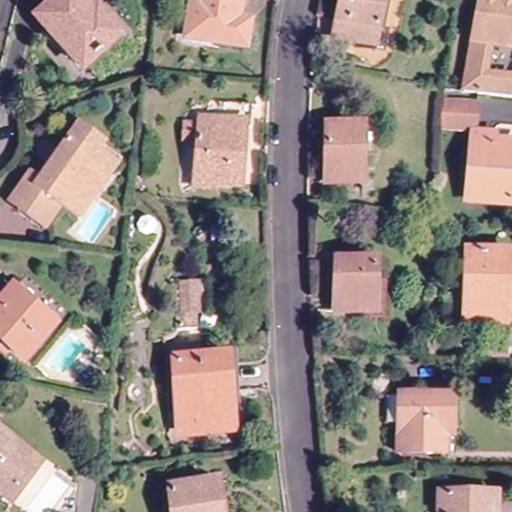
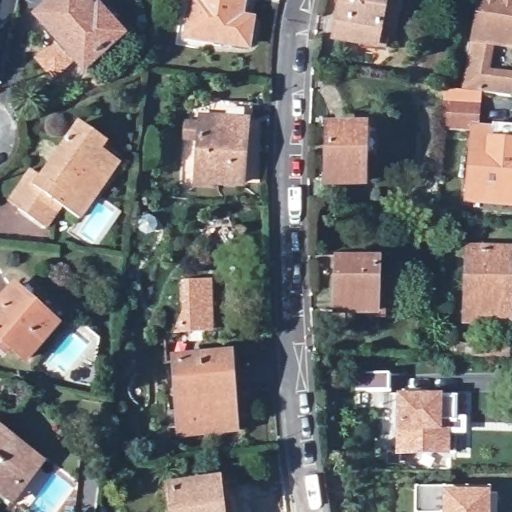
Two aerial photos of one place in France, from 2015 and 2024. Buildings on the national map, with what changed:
unchanged [(100,13),(123,39),(84,73),(39,21),(55,5),(51,0),(81,0),(96,17),(100,13)]
unchanged [(249,22),(245,47),(186,40),(192,0),(199,0),(242,0),(239,21),(249,22)]
unchanged [(326,42),(338,8),(332,6),(335,0),(386,0),(367,56),(326,42)]
unchanged [(484,61),(465,57),(477,0),(512,0),(512,46),(487,42),(484,61)]
unchanged [(442,100),(471,105),(468,123),(439,118),(442,100)]
unchanged [(233,189),(191,186),(193,142),(181,141),(181,128),(200,130),(202,107),(246,110),(244,132),(237,132),(233,189)]
unchanged [(362,129),(361,188),(325,186),(325,127),(362,129)]
unchanged [(490,139),(512,142),(512,160),(507,201),(463,195),(471,129),(491,132),(490,139)]
unchanged [(22,177),(31,167),(44,178),(80,136),(104,156),(121,170),(100,196),(76,224),(59,209),(41,230),(18,210),(4,198),(22,177)]
unchanged [(509,246),(504,317),(458,315),(459,292),(462,293),(466,243),(509,246)]
unchanged [(376,262),(375,312),(335,311),(336,260),(376,262)]
unchanged [(176,331),(176,339),(156,338),(154,282),(199,281),(195,330),(176,331)]
unchanged [(55,327),(26,362),(10,347),(4,354),(0,351),(0,302),(11,289),(55,327)]
unchanged [(503,353),(472,352),(472,338),(503,339),(503,353)]
unchanged [(222,431),(174,429),(176,356),(235,357),(233,399),(232,431),(222,431)]
unchanged [(386,391),(360,390),(361,373),(386,375),(386,391)]
unchanged [(400,398),(455,401),(455,422),(454,435),(446,434),(445,456),(424,455),(399,453),(399,445),(400,398)]
unchanged [(33,477),(12,502),(7,497),(0,491),(0,436),(29,459),(29,460),(40,467),(33,477)]
unchanged [(167,487),(210,484),(211,484),(214,512),(215,512),(169,512),(167,487)]
unchanged [(495,497),(495,512),(433,512),(433,496),(495,497)]

